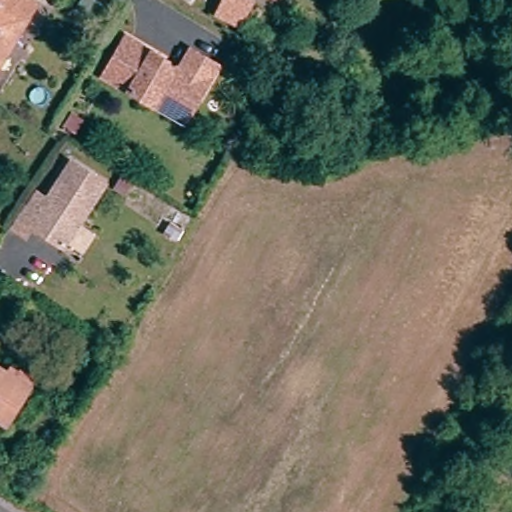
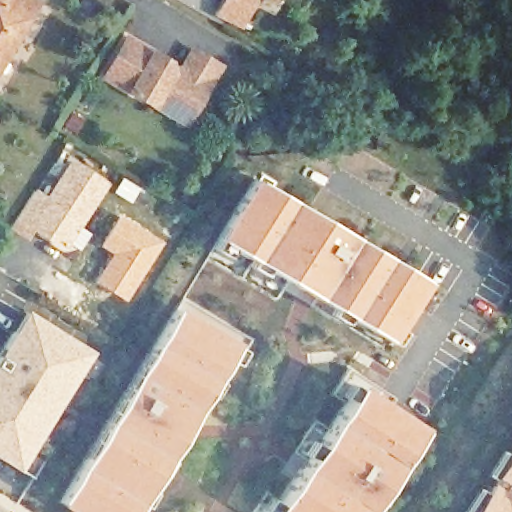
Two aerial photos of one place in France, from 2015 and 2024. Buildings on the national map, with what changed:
unchanged [(27,0),(35,5),(27,19),(0,63),(0,0),(27,0)]
demolished [(210,0),(237,0),(231,12),(210,0)]
new [(215,17),(224,0),(258,0),(242,32),(215,17)]
new [(275,0),(277,0),(277,1),(275,0)]
unchanged [(134,91),(98,69),(122,31),(155,51),(151,56),(156,59),(164,57),(166,65),(176,62),(186,46),(212,62),(196,90),(177,118),(134,91)]
unchanged [(61,250),(29,229),(22,239),(7,229),(27,199),(32,193),(45,202),(70,165),(103,187),(61,250)]
new [(422,278),(385,339),(216,237),(252,178),(422,278)]
new [(111,254),(99,245),(119,215),(163,241),(126,302),(94,281),(111,254)]
new [(238,343),(139,512),(71,512),(60,506),(178,307),(238,343)]
new [(0,459),(0,351),(25,311),(92,351),(17,470),(0,459)]
demolished [(3,375),(25,388),(25,389),(2,426),(0,425),(0,373),(3,375)]
new [(422,427),(367,512),(274,512),(357,384),(422,427)]
new [(512,452),(512,467),(503,481),(495,475),(511,451),(512,452)]
new [(512,467),(512,512),(483,512),(512,467)]
new [(487,488),(495,493),(483,512),(471,512),(487,488)]

